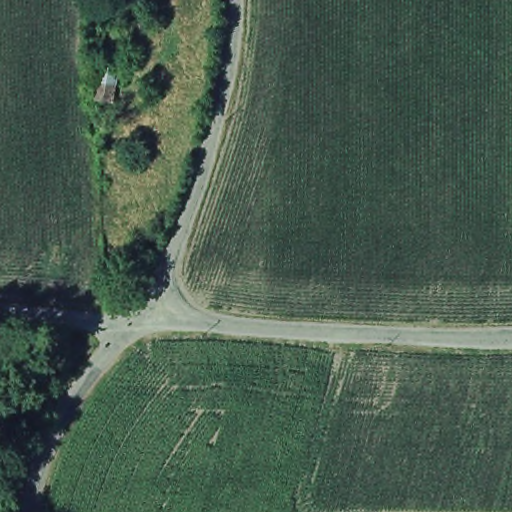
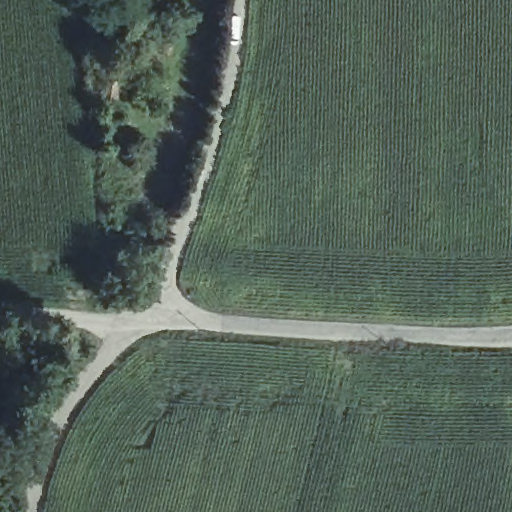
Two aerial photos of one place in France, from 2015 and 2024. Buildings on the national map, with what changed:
[]

